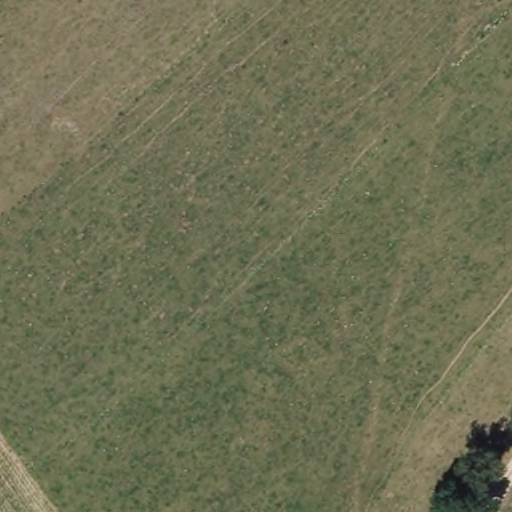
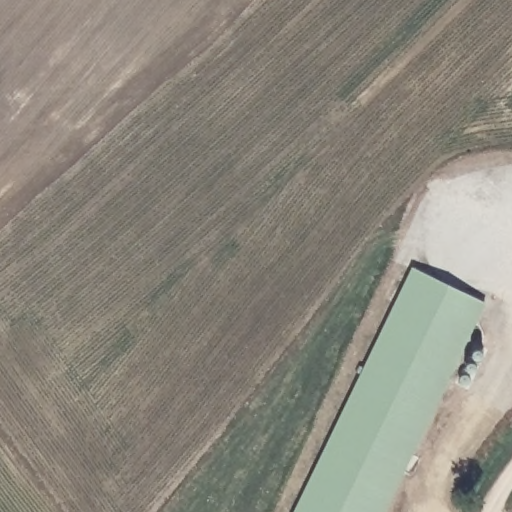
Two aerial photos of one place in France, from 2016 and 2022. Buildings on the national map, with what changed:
new [(412,268),(486,300),(468,344),(478,347),(481,350),(483,354),(473,376),(468,386),(466,387),(461,386),(450,379),(385,512),(293,512),(412,268)]

